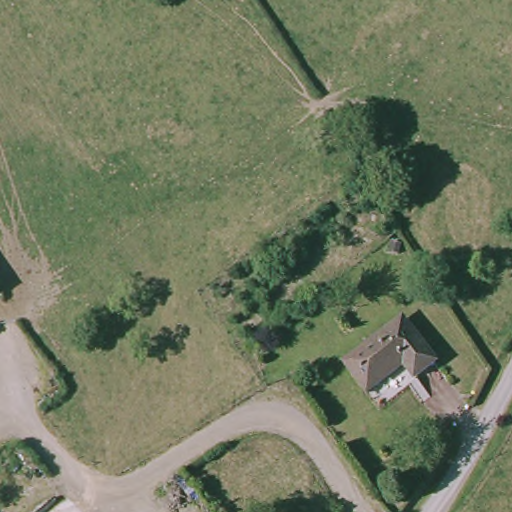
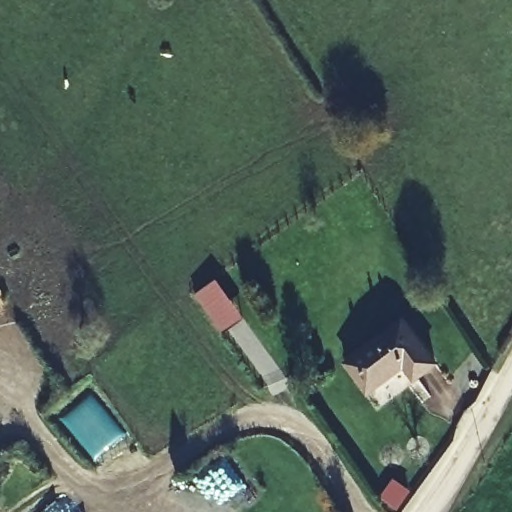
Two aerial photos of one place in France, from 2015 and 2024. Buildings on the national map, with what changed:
unchanged [(365,141),(380,166),(370,175),(352,150),(365,141)]
new [(245,317),(223,334),(194,294),(217,278),(245,317)]
unchanged [(402,320),(423,347),(435,362),(413,381),(402,366),(367,393),(359,383),(343,365),(346,363),(402,320)]

